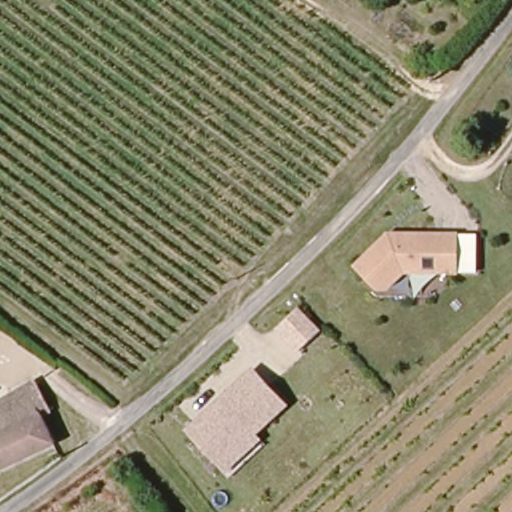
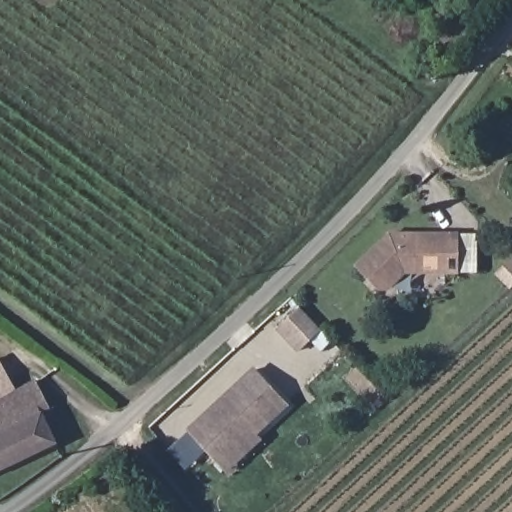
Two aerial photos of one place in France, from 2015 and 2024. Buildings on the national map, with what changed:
unchanged [(461,275),(402,274),(383,296),(355,266),(393,231),(459,233),(461,275)]
unchanged [(299,306),(322,331),(299,354),(275,329),(299,306)]
unchanged [(254,366),(290,405),(259,432),(265,441),(227,475),(185,430),(254,366)]
unchanged [(55,416),(45,422),(51,439),(0,466),(0,400),(38,381),(55,416)]

